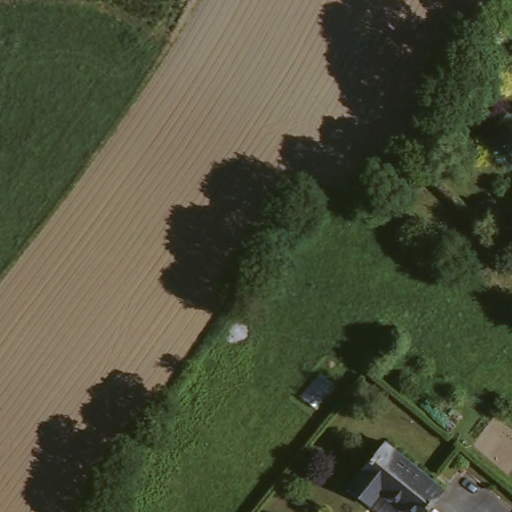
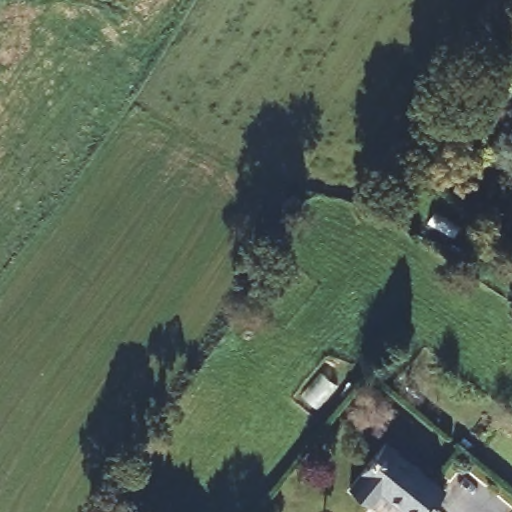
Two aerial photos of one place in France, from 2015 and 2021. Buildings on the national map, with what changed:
unchanged [(358,480),(396,436),(453,487),(432,512),(396,512),(380,498),(358,480)]
unchanged [(213,512),(212,512),(213,511),(213,512)]

